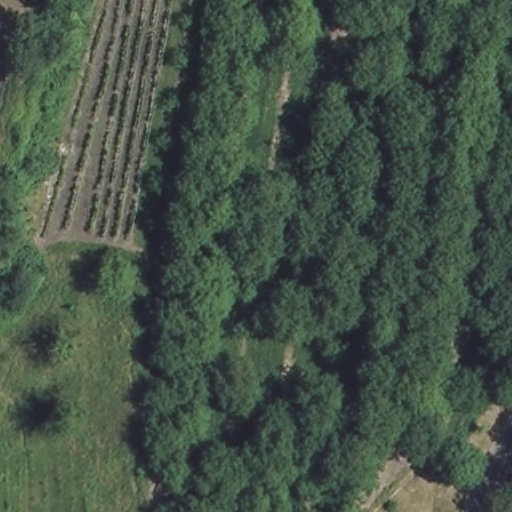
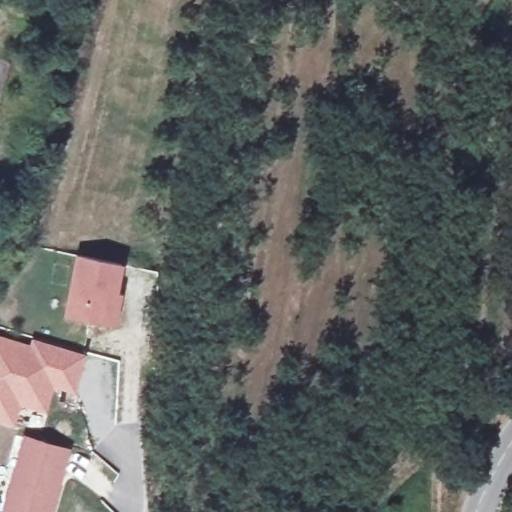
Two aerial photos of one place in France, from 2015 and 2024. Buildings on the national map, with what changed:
new [(127,265),(117,327),(74,320),(83,259),(127,265)]
new [(29,342),(31,337),(85,352),(75,395),(55,389),(48,415),(19,406),(12,427),(0,423),(0,334),(29,342)]
new [(48,512),(3,512),(24,443),(66,456),(48,512)]

